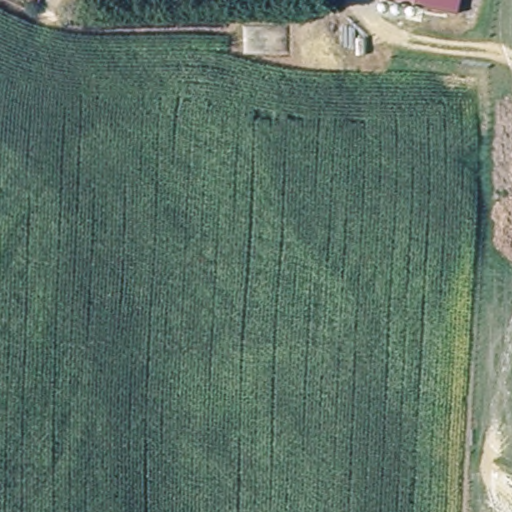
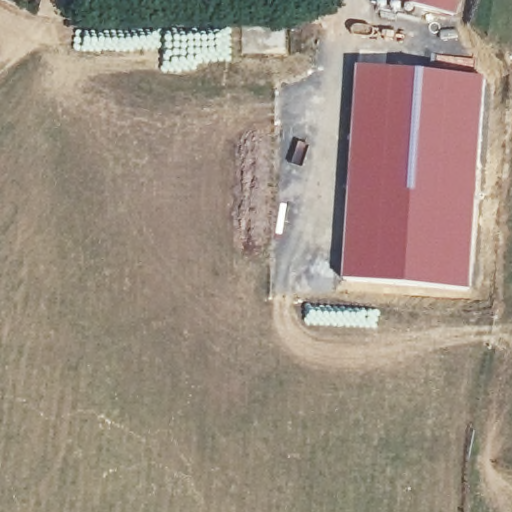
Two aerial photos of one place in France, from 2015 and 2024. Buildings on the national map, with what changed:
unchanged [(450,13),(396,0),(453,0),(450,13)]
new [(356,67),(423,71),(459,75),(460,70),(485,72),(478,190),(469,286),(342,280),(356,67)]

